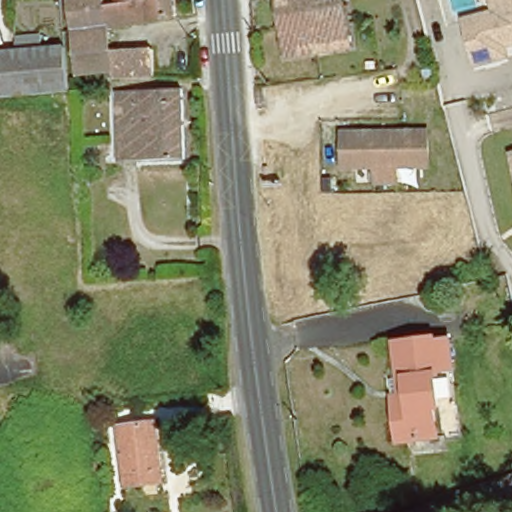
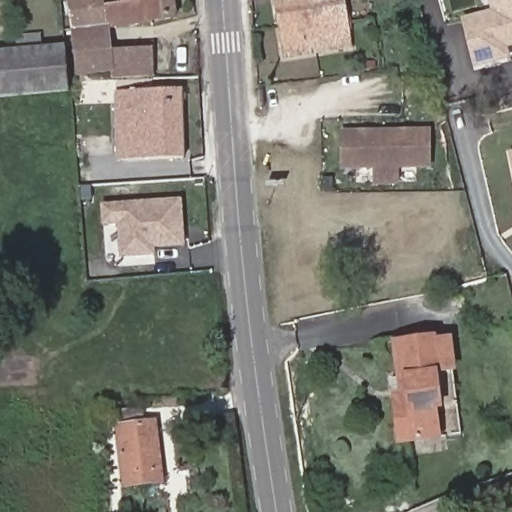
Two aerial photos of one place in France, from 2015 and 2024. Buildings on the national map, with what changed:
unchanged [(180,10),(114,22),(116,45),(117,66),(84,68),(77,0),(178,0),(180,10)]
unchanged [(355,47),(285,57),(278,0),(347,0),(355,47)]
unchanged [(493,0),(512,0),(512,43),(504,44),(506,55),(474,62),(468,30),(465,17),(496,10),(493,0)]
unchanged [(12,50),(10,36),(11,36),(46,32),(47,47),(59,46),(60,46),(64,90),(0,96),(0,52),(12,50)]
unchanged [(116,45),(157,43),(158,69),(118,71),(117,66),(116,45)]
unchanged [(122,152),(119,86),(187,85),(189,151),(122,152)]
unchanged [(427,128),(430,161),(398,164),(399,180),(378,182),(377,166),(345,168),(342,135),(427,128)]
unchanged [(512,158),(512,191),(506,159),(512,158)]
new [(181,197),(184,243),(154,245),(154,252),(121,255),(119,221),(103,223),(102,203),(181,197)]
unchanged [(449,337),(452,366),(437,368),(438,372),(435,373),(439,405),(434,405),(437,434),(399,438),(392,377),(400,376),(396,344),(395,339),(434,334),(434,335),(434,339),(449,337)]
unchanged [(123,423),(160,417),(168,475),(131,481),(123,423)]

